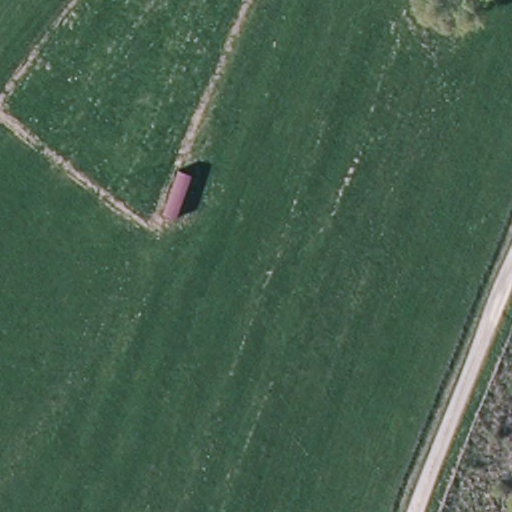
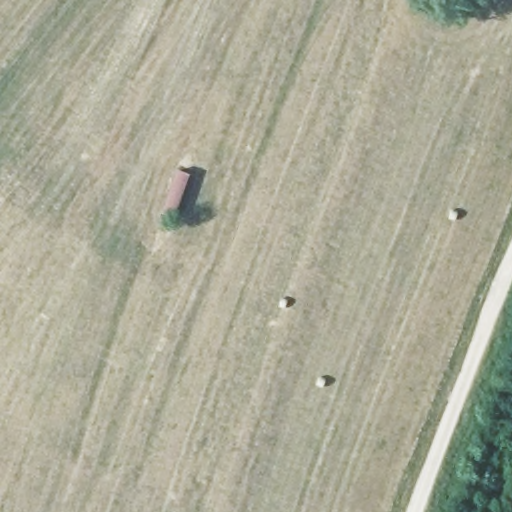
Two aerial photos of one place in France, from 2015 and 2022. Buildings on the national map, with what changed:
unchanged [(190,177),(175,221),(162,216),(177,172),(190,177)]

